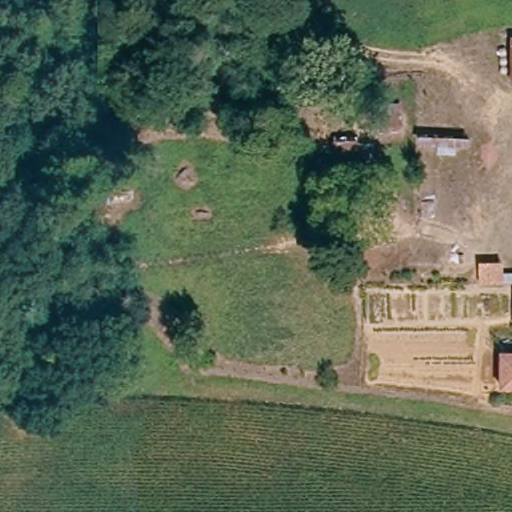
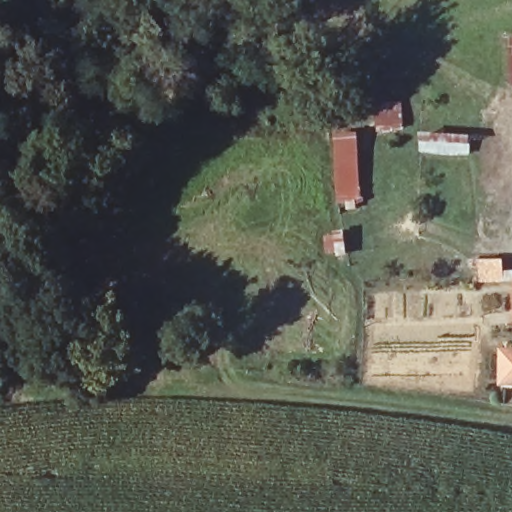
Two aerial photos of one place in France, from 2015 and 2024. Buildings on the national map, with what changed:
unchanged [(511,36),(512,36),(512,85),(509,85),(511,36)]
new [(362,204),(337,205),(335,134),(360,134),(362,204)]
unchanged [(498,351),(512,351),(512,383),(499,383),(498,351)]

